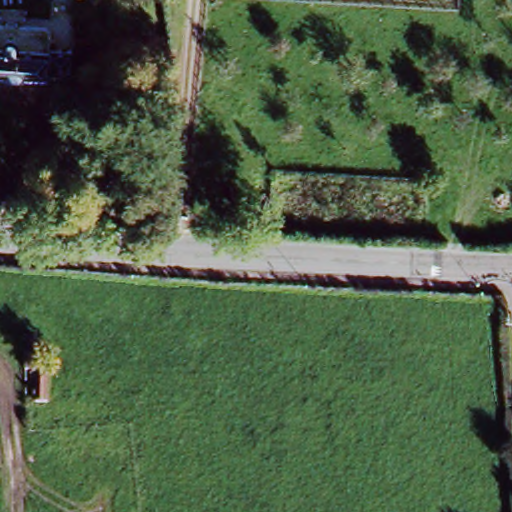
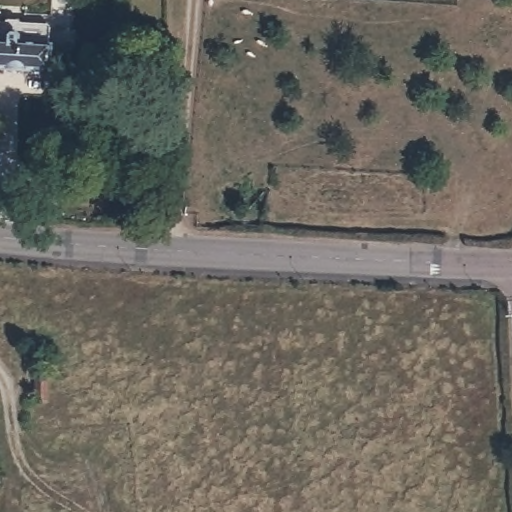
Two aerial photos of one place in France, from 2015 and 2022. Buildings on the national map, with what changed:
unchanged [(67,56),(66,82),(42,81),(0,79),(0,45),(4,42),(9,42),(12,46),(11,53),(67,56)]
unchanged [(34,371),(24,371),(22,339),(35,338),(35,363),(45,363),(44,369),(46,369),(47,402),(32,403),(34,371)]

